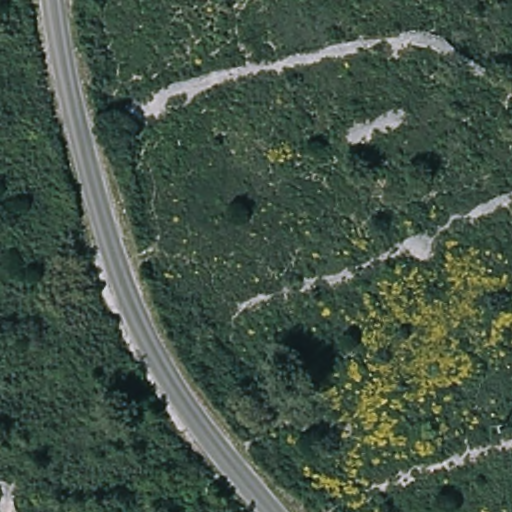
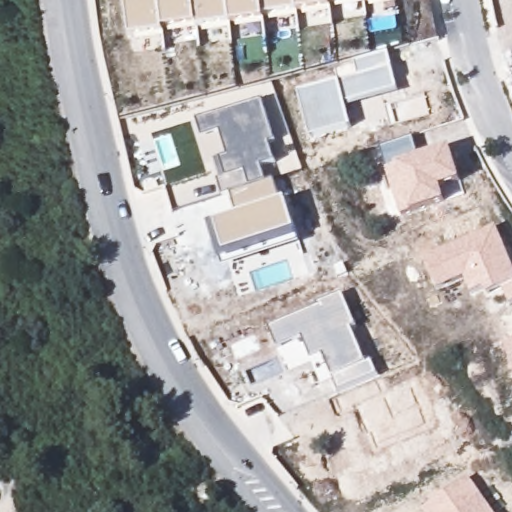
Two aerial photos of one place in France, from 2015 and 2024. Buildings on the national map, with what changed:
new [(331,6),(264,13),(264,18),(197,26),(197,22),(164,27),(164,31),(132,35),(126,0),(342,0),(330,1),(331,6)]
new [(339,78),(357,74),(353,58),(388,50),(392,65),(398,90),(346,103),(351,125),(310,136),(297,89),(339,78)]
new [(297,232),(299,240),(222,264),(209,224),(215,222),(237,215),(230,190),(222,193),(216,174),(219,173),(214,158),(227,153),(219,128),(200,134),(195,116),(261,97),(274,139),(267,141),(273,159),(259,164),(265,180),(273,178),(281,201),(287,200),(297,232)]
new [(412,135),(418,155),(450,145),(461,180),(440,187),(444,201),(410,212),(409,208),(400,213),(386,165),(379,144),(412,135)]
new [(512,263),(512,302),(509,303),(502,288),(487,294),(484,287),(471,293),(464,276),(437,287),(424,255),(496,225),(512,263)]
new [(356,325),(351,327),(365,360),(370,358),(376,372),(337,388),(323,352),(311,356),(301,334),(276,344),(268,325),(318,305),(317,300),(341,290),(356,325)]
new [(503,340),(512,336),(512,362),(503,340)]
new [(467,475),(494,512),(424,512),(422,508),(467,475)]

